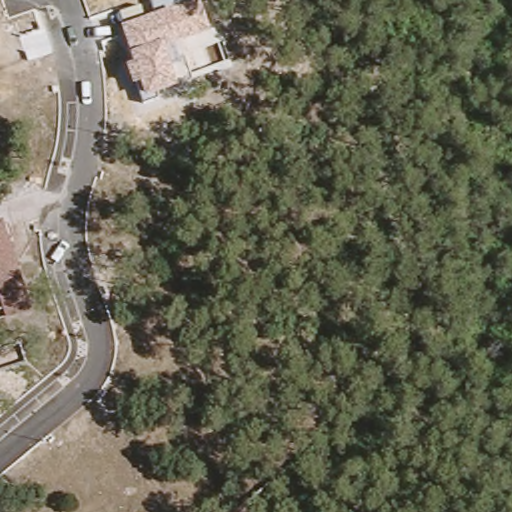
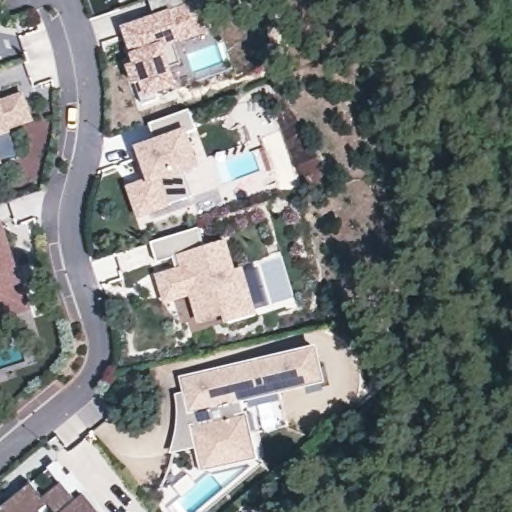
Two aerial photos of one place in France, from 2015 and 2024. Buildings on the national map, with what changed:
unchanged [(128,66),(136,63),(132,54),(124,27),(155,17),(150,1),(151,0),(199,0),(211,32),(177,44),(183,63),(174,66),(180,88),(158,96),(159,99),(145,104),(139,84),(135,85),(128,66)]
new [(32,121),(8,129),(10,133),(0,136),(0,102),(23,95),(32,121)]
new [(137,150),(159,142),(152,123),(191,109),(199,129),(188,133),(199,165),(185,171),(194,197),(142,215),(132,188),(148,182),(142,165),(137,150)]
unchanged [(24,283),(32,310),(6,320),(3,311),(0,312),(0,224),(5,223),(24,283)]
new [(176,257),(160,262),(153,242),(201,228),(207,247),(226,241),(236,270),(243,268),(257,315),(232,323),(229,313),(204,321),(195,292),(169,300),(162,276),(180,271),(176,257)]
new [(175,444),(179,428),(180,414),(179,396),(184,395),(180,377),(317,347),(318,347),(326,386),(279,395),(286,428),(251,435),(257,462),(201,473),(196,449),(171,454),(175,444)]
new [(42,497),(61,482),(75,500),(82,494),(97,512),(0,512),(0,507),(30,483),(42,497)]

